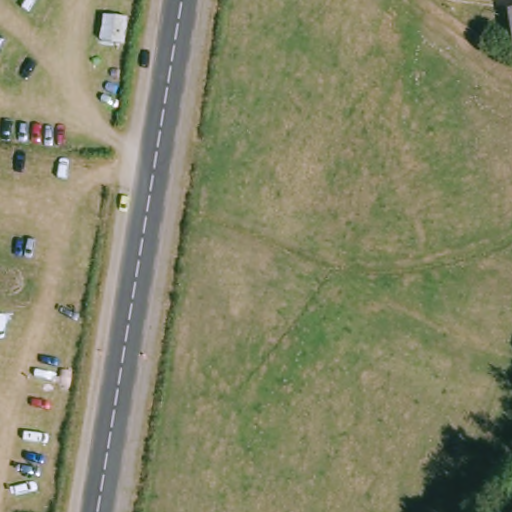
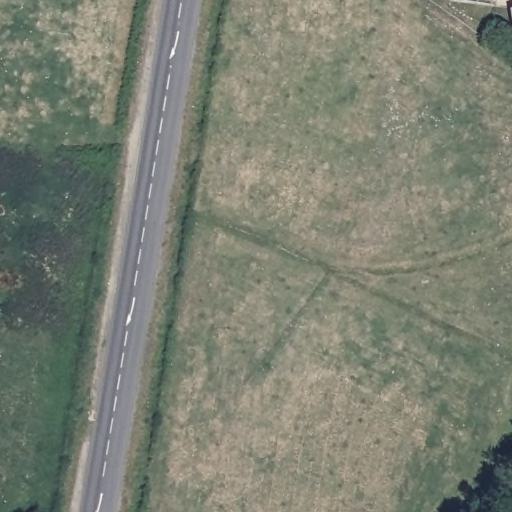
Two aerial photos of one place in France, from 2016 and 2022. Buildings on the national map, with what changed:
unchanged [(511,19),(512,19),(512,22),(511,19)]

